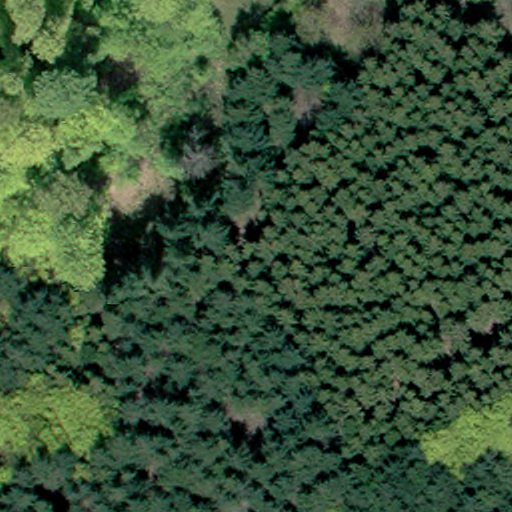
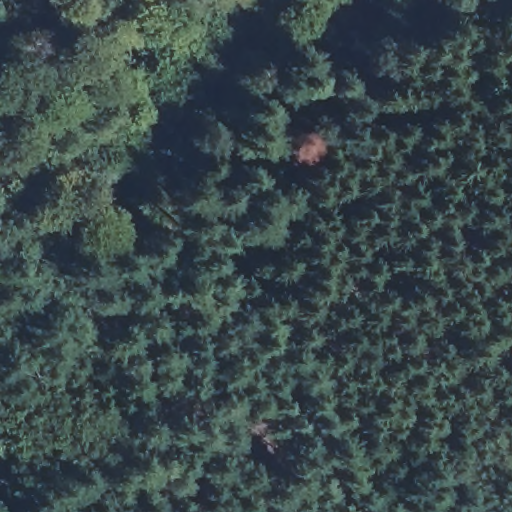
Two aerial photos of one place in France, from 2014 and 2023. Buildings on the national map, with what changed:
[]

